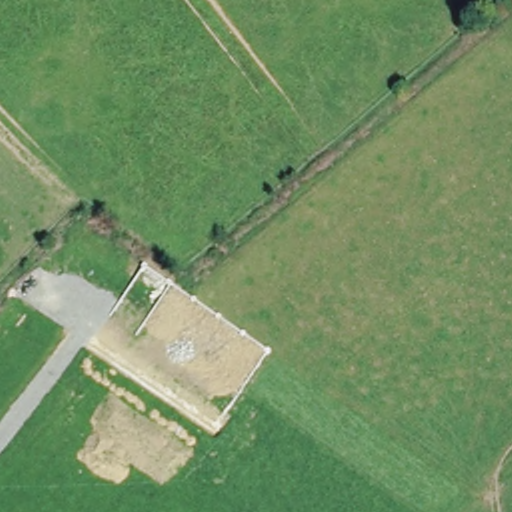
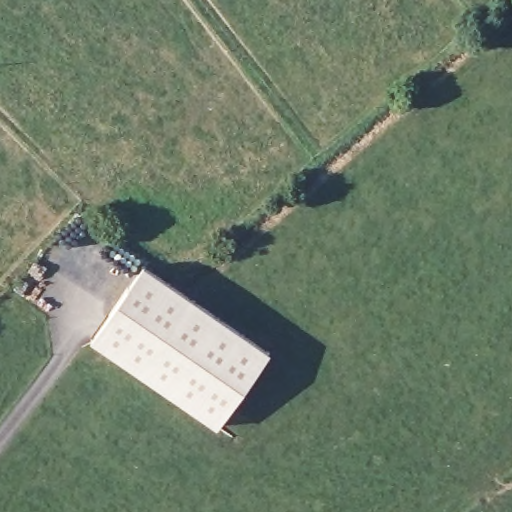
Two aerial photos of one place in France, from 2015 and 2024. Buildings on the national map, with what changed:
new [(181,288),(273,349),(220,429),(94,347),(147,266),(181,288)]

